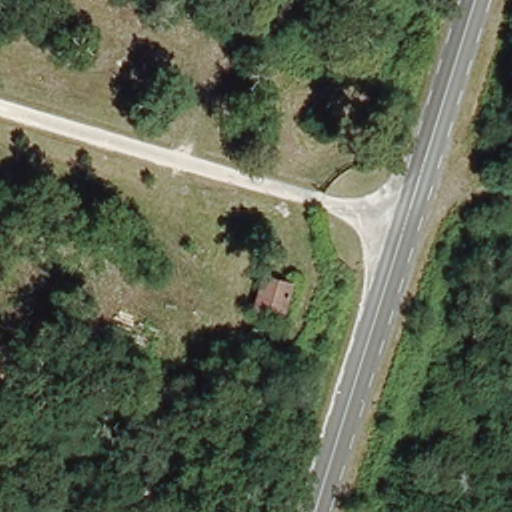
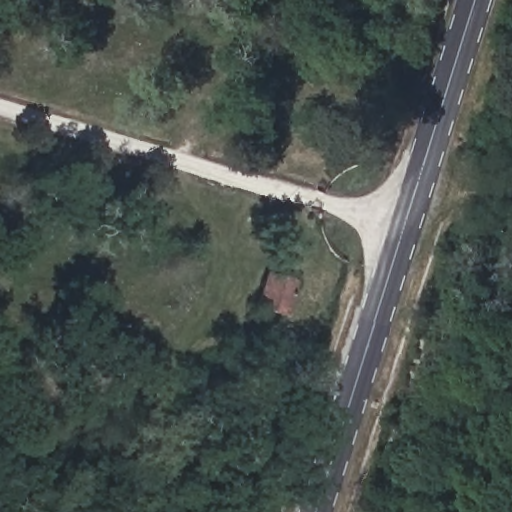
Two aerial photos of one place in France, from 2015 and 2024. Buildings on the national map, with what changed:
unchanged [(261,270),(290,278),(283,307),(253,299),(261,270)]

